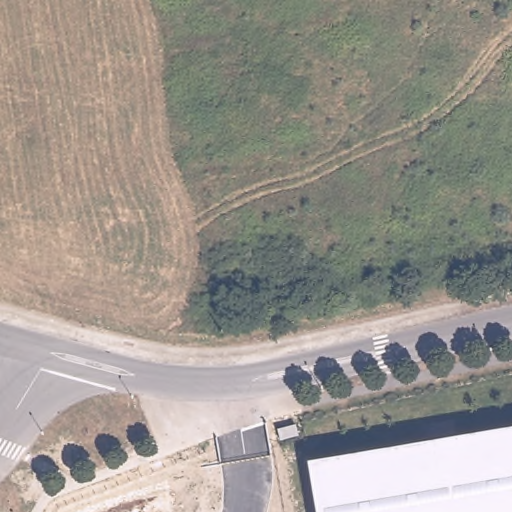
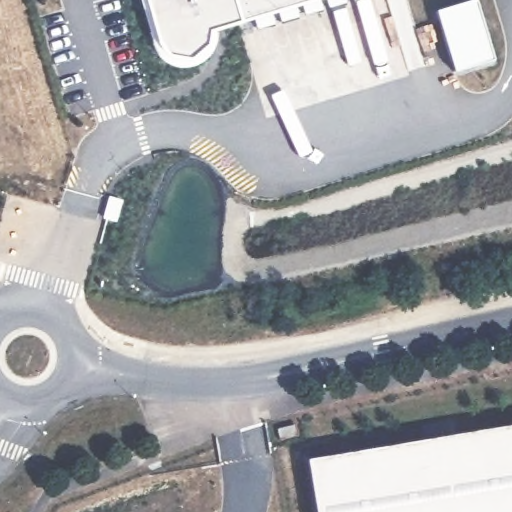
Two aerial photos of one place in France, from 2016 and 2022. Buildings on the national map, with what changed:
new [(248,20),(242,22),(209,33),(206,47),(189,60),(175,60),(164,57),(156,49),(142,0),(361,0),(256,29),(248,20)]
new [(436,10),(473,0),(476,0),(495,61),(454,72),(436,10)]
unchanged [(512,426),(512,512),(316,512),(308,461),(512,426)]

